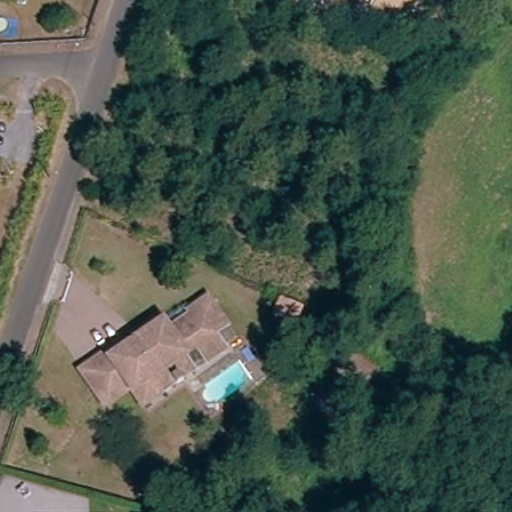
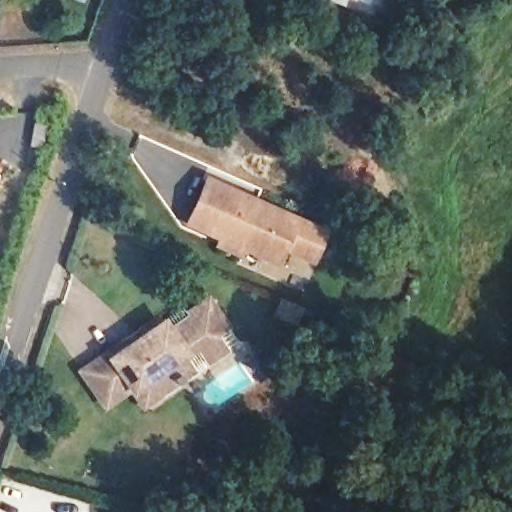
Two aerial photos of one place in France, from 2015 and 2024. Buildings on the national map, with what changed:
new [(333,0),(343,0),(342,3),(333,0)]
new [(243,202),(255,207),(324,238),(312,265),(285,253),(278,268),(244,253),(241,260),(221,251),(224,244),(210,238),(186,226),(200,209),(209,187),(243,202)]
unchanged [(124,400),(118,392),(92,410),(70,377),(144,321),(154,334),(192,302),(218,331),(203,343),(216,356),(199,368),(188,353),(173,364),(185,379),(157,399),(136,414),(124,400)]

